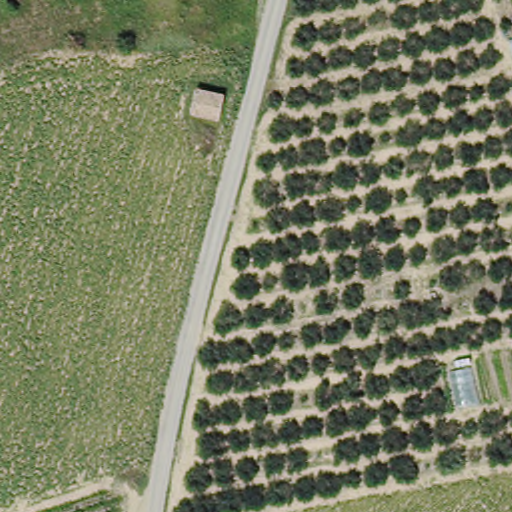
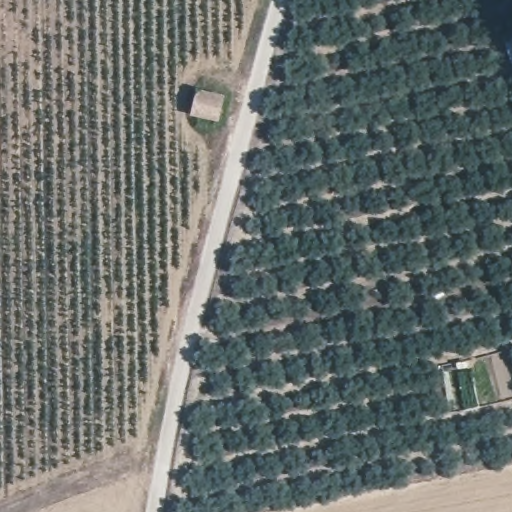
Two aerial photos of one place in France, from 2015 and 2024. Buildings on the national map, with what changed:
unchanged [(200,96),(226,101),(220,126),(195,120),(200,96)]

